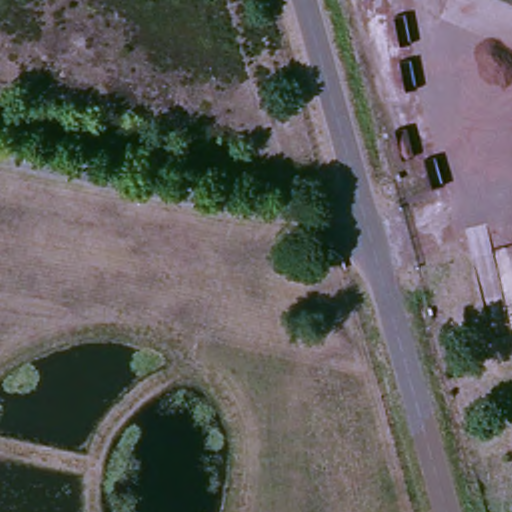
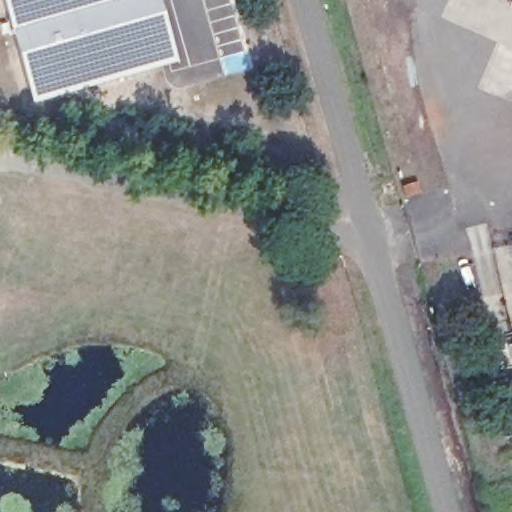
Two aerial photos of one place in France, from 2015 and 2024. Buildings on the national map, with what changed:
new [(178,62),(126,75),(32,103),(10,30),(2,0),(161,0),(178,62)]

